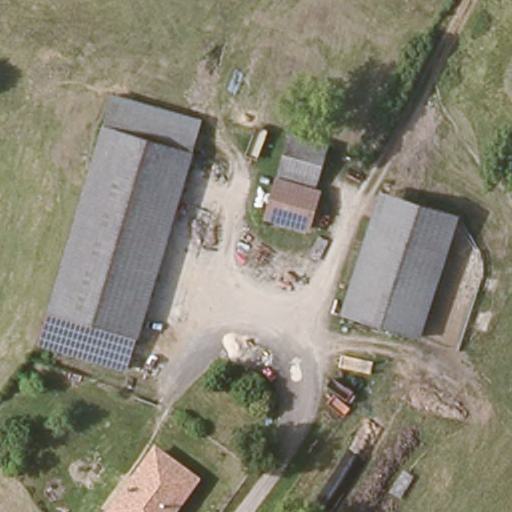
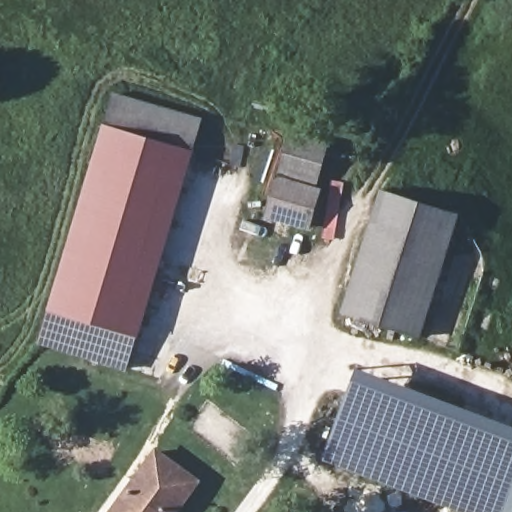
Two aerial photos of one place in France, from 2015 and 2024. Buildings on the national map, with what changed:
demolished [(238,104),(260,39),(275,45),(252,109),(238,104)]
unchanged [(122,97),(202,126),(193,158),(111,132),(122,97)]
unchanged [(288,131),(324,148),(313,187),(275,175),(288,131)]
unchanged [(54,309),(111,132),(193,158),(141,334),(90,319),(54,309)]
unchanged [(319,194),(307,234),(267,223),(278,183),(319,194)]
unchanged [(395,197),(443,212),(433,245),(385,232),(395,197)]
unchanged [(385,232),(433,245),(410,330),(398,327),(361,315),(385,232)]
new [(37,343),(54,309),(90,319),(78,356),(37,343)]
unchanged [(141,334),(129,372),(78,356),(90,319),(141,334)]
new [(322,459),(357,367),(512,424),(512,512),(461,512),(322,459)]
unchanged [(182,512),(102,512),(131,473),(138,479),(156,452),(206,482),(182,512)]
demolished [(102,512),(100,512),(83,499),(110,458),(131,473),(102,512)]

